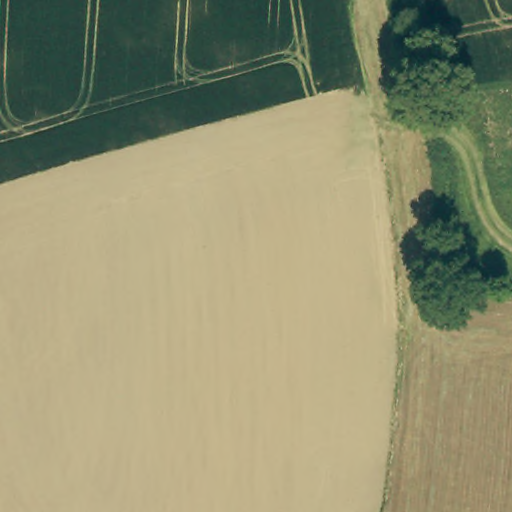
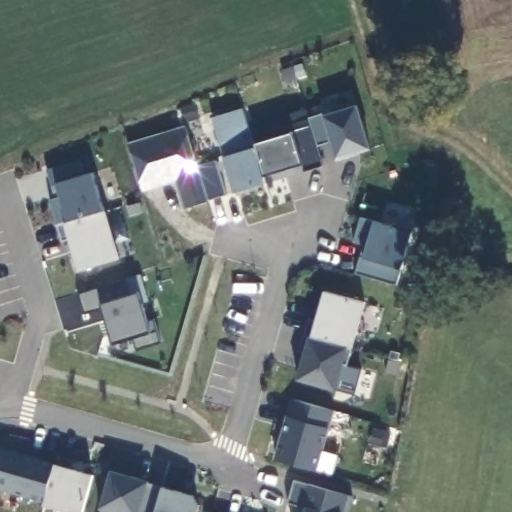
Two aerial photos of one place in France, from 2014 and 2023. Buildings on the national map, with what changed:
new [(312,120),(328,115),(328,118),(361,107),(374,150),(358,156),(358,158),(342,163),(336,144),(321,148),(312,120)]
new [(242,110),(253,146),(277,139),(273,131),(288,126),(284,116),(305,110),(308,120),(322,167),(303,173),(301,166),(265,177),(267,184),(235,193),(224,158),(212,119),(242,110)]
new [(187,127),(198,166),(214,161),(225,196),(207,202),(185,208),(176,181),(141,191),(128,144),(187,127)]
new [(79,161),(84,177),(93,174),(104,211),(119,260),(79,272),(69,241),(61,243),(48,201),(54,199),(45,172),(79,161)]
new [(350,243),(357,217),(390,226),(390,224),(409,229),(394,285),(352,274),(357,256),(360,245),(350,243)]
new [(140,279),(148,306),(142,308),(147,326),(154,324),(161,348),(136,356),(133,344),(113,350),(111,345),(110,346),(104,326),(105,326),(102,315),(84,320),(77,299),(140,279)]
new [(365,304),(351,352),(347,350),(335,391),(297,382),(311,338),(325,292),(365,304)]
new [(333,411),(327,430),(315,472),(274,461),(287,417),(292,400),(333,411)]
new [(56,468),(58,461),(75,465),(73,473),(95,479),(86,512),(59,512),(45,508),(56,468)]
new [(111,474),(163,488),(156,512),(101,512),(111,474)]
new [(306,485),(347,496),(352,498),(349,512),(304,512),(305,509),(287,504),(294,482),(306,485)]
new [(193,497),(198,506),(196,512),(156,512),(163,488),(193,497)]

